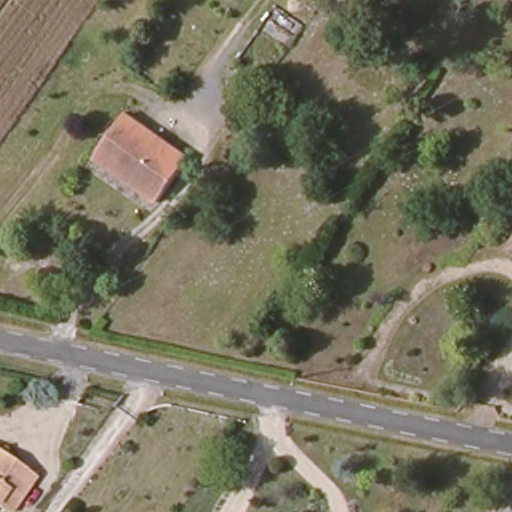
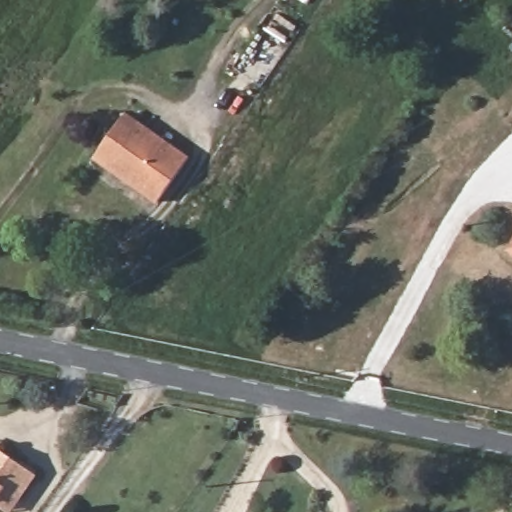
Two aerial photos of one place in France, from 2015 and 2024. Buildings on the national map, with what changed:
unchanged [(98,148),(124,112),(185,155),(152,201),(115,174),(91,157),(98,148)]
unchanged [(512,247),(512,252),(510,250),(512,247)]
unchanged [(0,511),(0,451),(38,479),(23,503),(17,512),(2,512),(0,511)]

